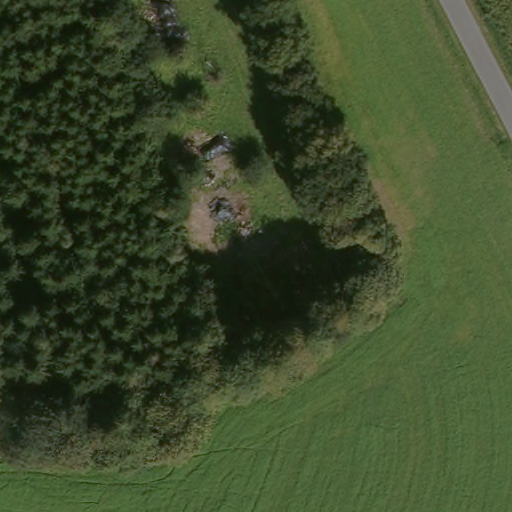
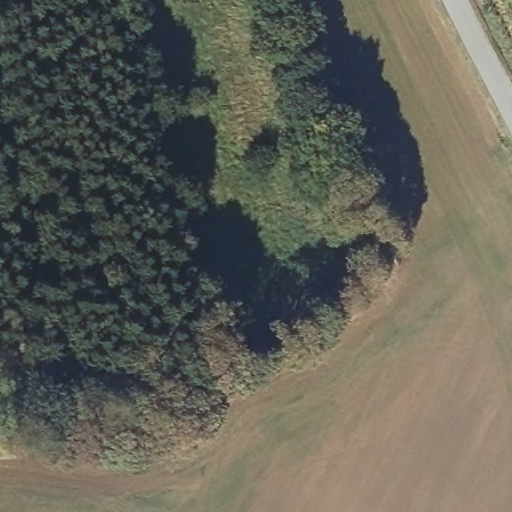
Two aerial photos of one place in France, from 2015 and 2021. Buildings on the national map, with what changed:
[]

